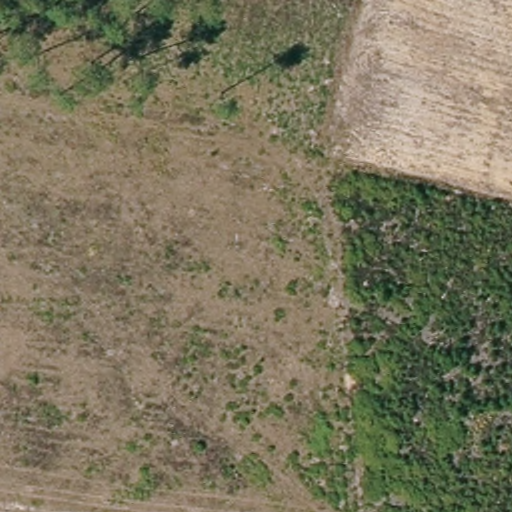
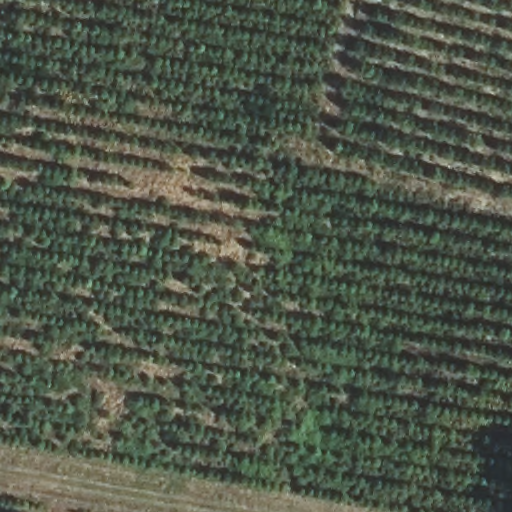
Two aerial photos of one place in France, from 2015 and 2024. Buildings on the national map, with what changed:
[]

